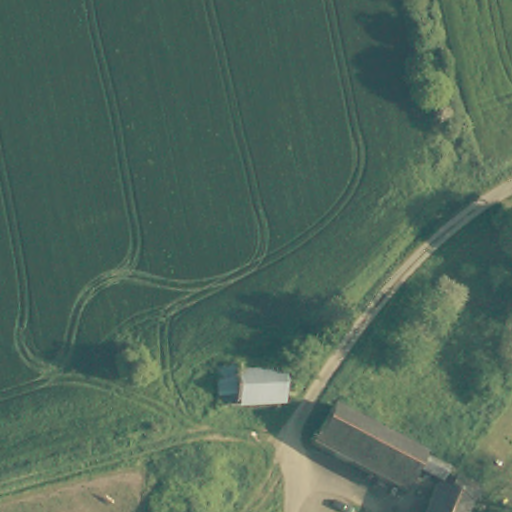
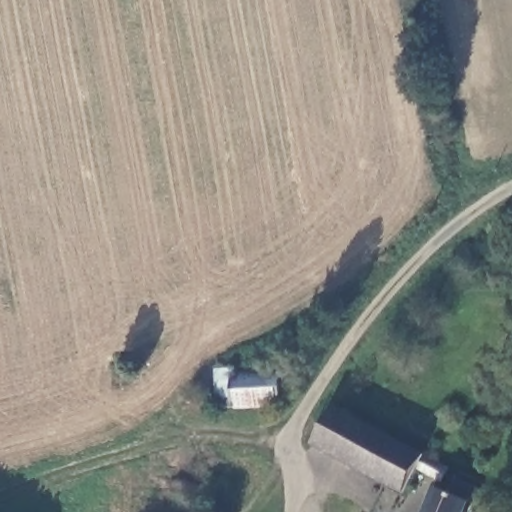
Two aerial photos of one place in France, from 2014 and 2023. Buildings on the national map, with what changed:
unchanged [(241,367),(241,372),(287,367),(288,382),(289,403),(226,409),(222,370),(241,367)]
unchanged [(337,406),(447,471),(445,475),(440,483),(418,471),(406,492),(316,443),(337,406)]
unchanged [(212,465),(212,475),(187,475),(187,466),(212,465)]
unchanged [(458,481),(479,490),(469,512),(428,512),(439,488),(453,494),(458,481)]

